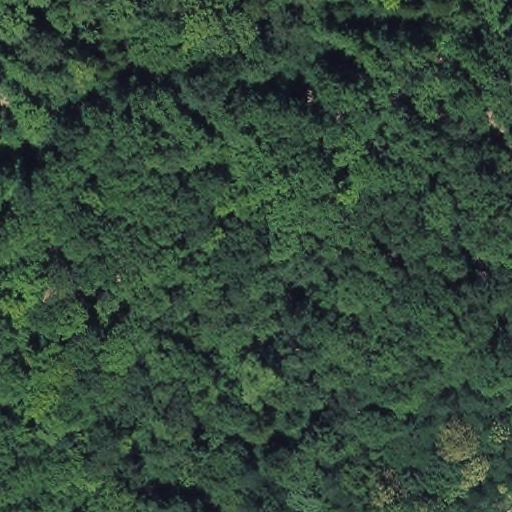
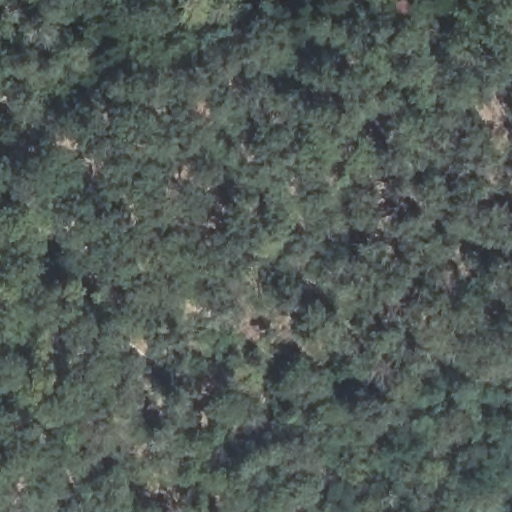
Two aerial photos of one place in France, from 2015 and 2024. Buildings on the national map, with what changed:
[]

